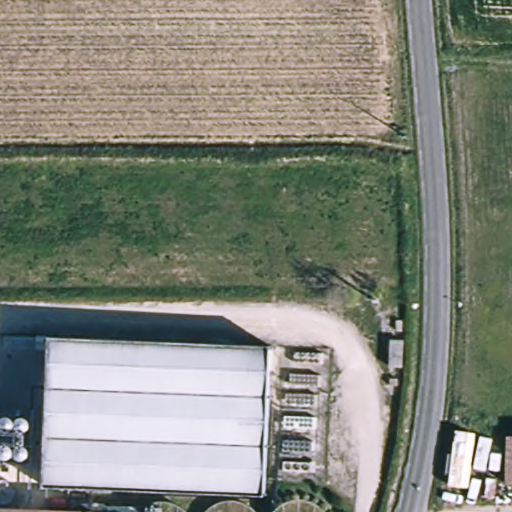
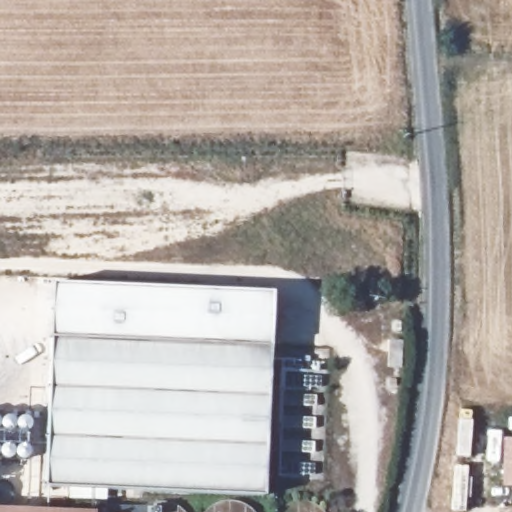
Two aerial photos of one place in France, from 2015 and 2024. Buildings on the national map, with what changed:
new [(48,284),(265,293),(264,341),(45,333),(48,284)]
unchanged [(40,478),(45,333),(264,341),(260,487),(232,487),(225,487),(217,487),(40,478)]
unchanged [(394,360),(384,360),(385,333),(395,333),(394,360)]
unchanged [(32,418),(30,464),(0,463),(0,417),(32,418)]
unchanged [(507,438),(512,438),(512,485),(504,485),(507,438)]
unchanged [(241,488),(249,492),(256,500),(262,510),(262,512),(201,512),(202,509),(208,498),(216,491),(225,487),(232,487),(241,488)]
unchanged [(130,502),(137,495),(147,491),(155,490),(164,491),(174,497),(181,504),(184,512),(125,512),(130,502)]
unchanged [(271,510),(277,500),(285,493),(293,490),(301,490),(310,490),(317,494),(325,501),(331,512),(270,512),(271,510)]
unchanged [(62,505),(76,495),(95,492),(110,501),(114,510),(115,512),(57,512),(57,511),(62,505)]
unchanged [(57,511),(57,512),(0,512),(0,510),(57,511)]

